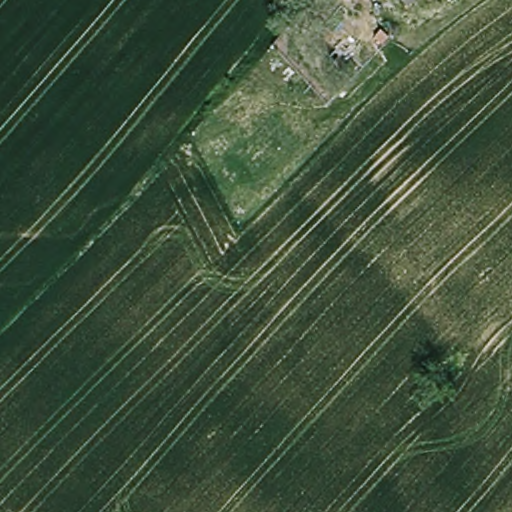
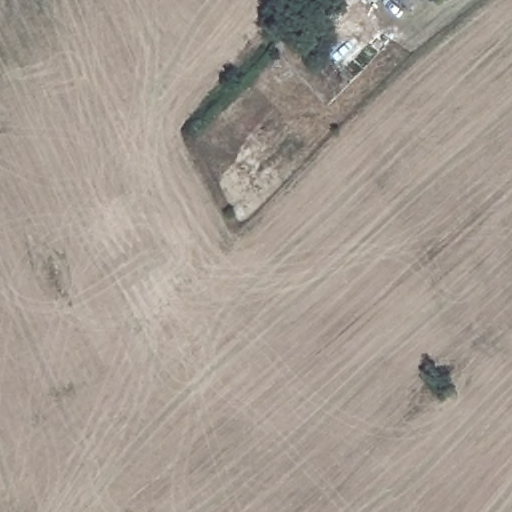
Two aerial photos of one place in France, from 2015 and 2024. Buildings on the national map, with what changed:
unchanged [(411,5),(404,0),(415,0),(411,5)]

